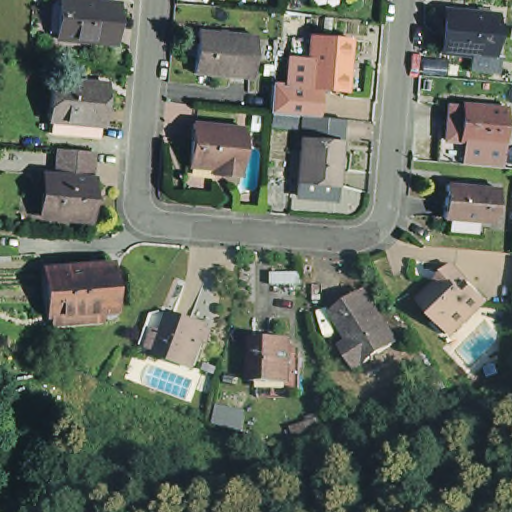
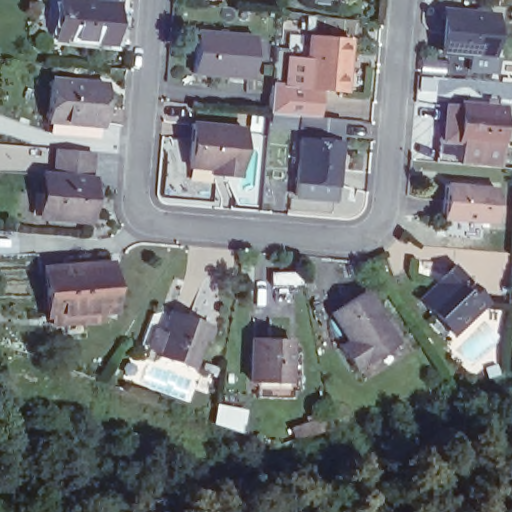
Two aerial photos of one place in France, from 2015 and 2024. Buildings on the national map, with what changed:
unchanged [(68,41),(72,1),(97,2),(94,43),(68,41)]
unchanged [(97,2),(123,5),(121,45),(94,43),(97,2)]
unchanged [(504,73),(478,71),(479,57),(452,55),(456,12),(504,16),(501,58),(505,59),(504,73)]
unchanged [(202,37),(261,43),(258,85),(199,79),(202,37)]
unchanged [(306,61),(308,38),(351,42),(347,95),(323,94),(322,118),(270,113),(273,82),(285,82),(289,58),(306,61)]
unchanged [(80,131),(55,128),(56,115),(60,77),(85,79),(113,81),(111,121),(108,121),(108,134),(80,131)]
unchanged [(467,107),(505,110),(503,147),(464,144),(467,107)]
unchanged [(204,126),(254,130),(250,178),(222,176),(223,171),(200,168),(204,126)]
unchanged [(307,137),(351,141),(347,184),(304,181),(307,137)]
unchanged [(50,177),(56,177),(62,177),(63,150),(79,151),(72,221),(52,219),(46,218),(50,177)]
unchanged [(99,153),(96,181),(99,182),(95,224),(72,221),(79,151),(99,153)]
unchanged [(452,191),(501,195),(499,229),(449,226),(452,191)]
unchanged [(51,264),(68,263),(112,261),(116,308),(105,310),(108,322),(63,324),(56,325),(55,312),(51,264)]
unchanged [(441,325),(447,319),(433,303),(465,271),(498,302),(465,336),(458,342),(441,325)]
unchanged [(376,295),(410,346),(367,372),(354,352),(361,346),(343,316),(376,295)]
unchanged [(183,316),(218,328),(205,370),(169,356),(183,316)]
unchanged [(306,385),(300,385),(301,395),(266,393),(266,377),(258,377),(258,336),(295,337),(296,349),(306,350),(306,385)]

